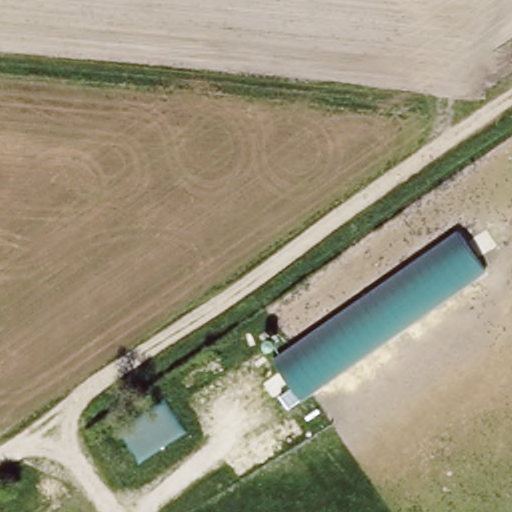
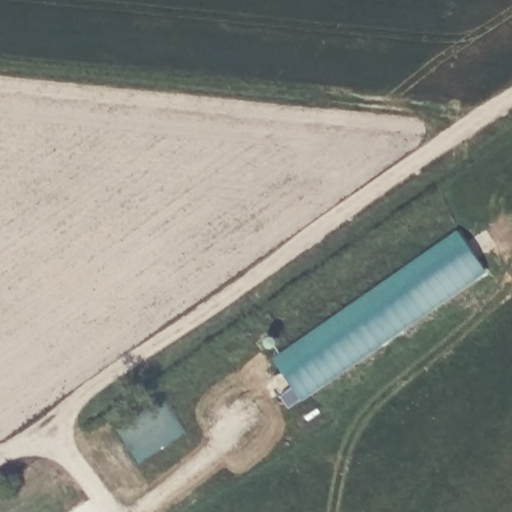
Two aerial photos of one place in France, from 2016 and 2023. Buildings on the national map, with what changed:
unchanged [(273,358),(456,228),(485,267),(301,398),(273,358)]

